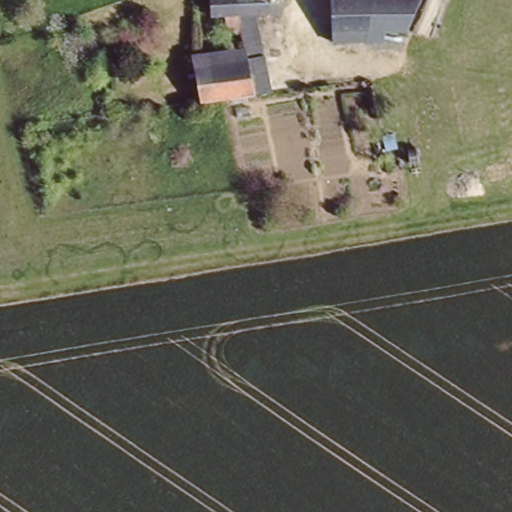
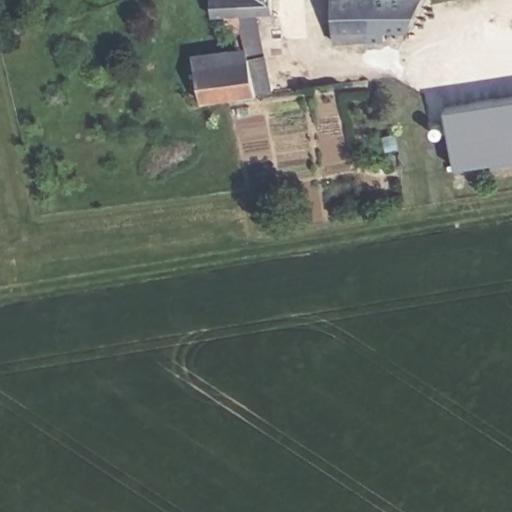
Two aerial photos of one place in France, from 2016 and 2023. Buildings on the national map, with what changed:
unchanged [(244,14),(245,29),(224,29),(224,15),(209,15),(207,0),(275,0),(276,13),(244,14)]
unchanged [(335,41),(334,0),(369,0),(369,40),(335,41)]
unchanged [(386,27),(387,39),(369,40),(369,0),(411,0),(399,27),(386,27)]
unchanged [(246,44),(251,94),(222,99),(195,102),(192,52),(246,44)]
new [(512,96),(512,165),(453,175),(442,108),(512,96)]

